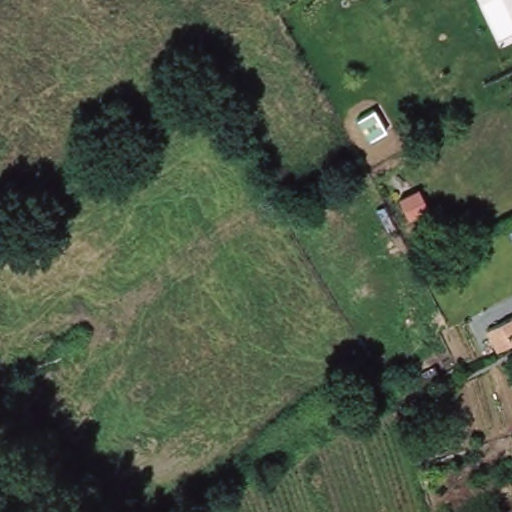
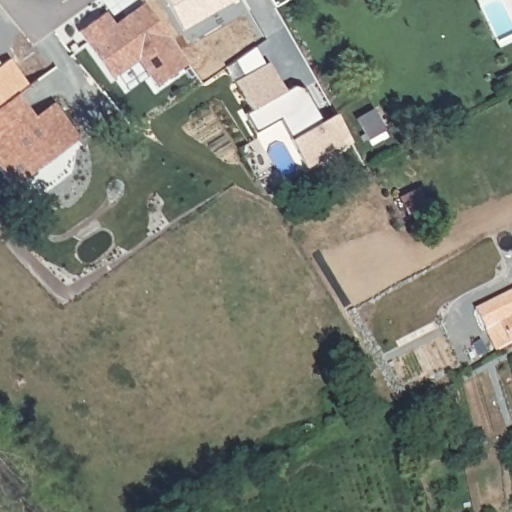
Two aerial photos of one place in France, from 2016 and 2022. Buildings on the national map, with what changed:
new [(165,0),(237,0),(182,32),(165,0)]
new [(138,61),(113,78),(79,31),(107,13),(114,24),(144,4),(187,62),(154,85),(138,61)]
new [(29,86),(18,95),(0,107),(0,67),(10,59),(29,86)]
new [(255,131),(244,112),(251,108),(235,80),(268,61),(284,89),(294,84),(304,86),(316,106),(323,119),(336,111),(352,140),(307,166),(291,138),(279,118),(255,131)]
new [(33,120),(53,106),(76,139),(13,186),(0,168),(0,106),(16,95),(33,120)]
unchanged [(396,201),(418,189),(428,211),(408,221),(396,201)]
unchanged [(482,333),(512,318),(512,344),(493,354),(482,333)]

